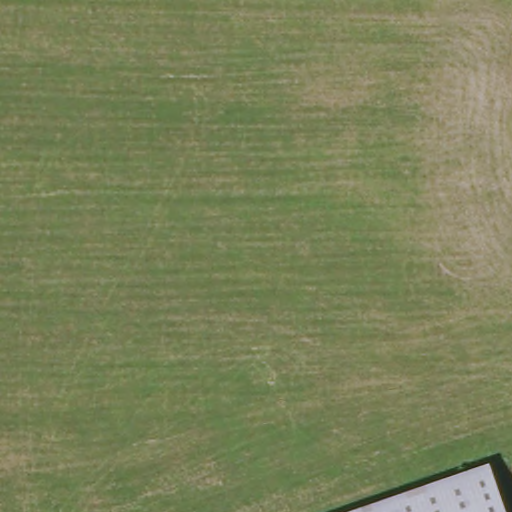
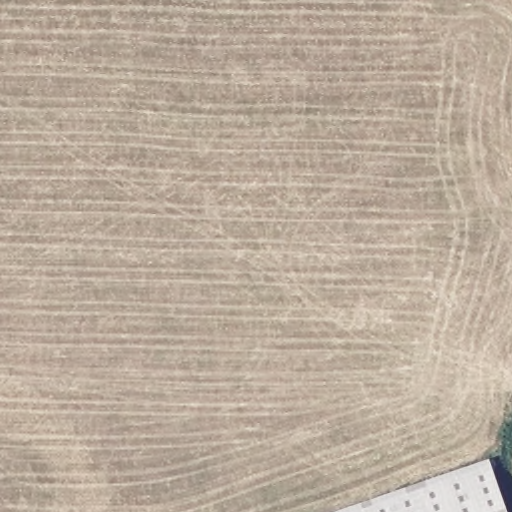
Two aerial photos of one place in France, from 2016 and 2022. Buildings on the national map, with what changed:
unchanged [(498,467),(512,510),(512,512),(352,512),(498,467)]

